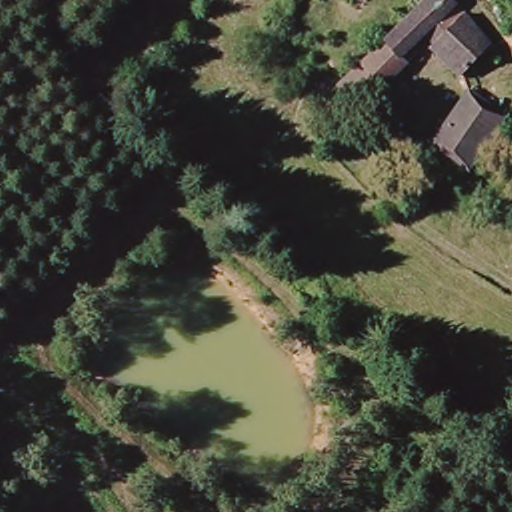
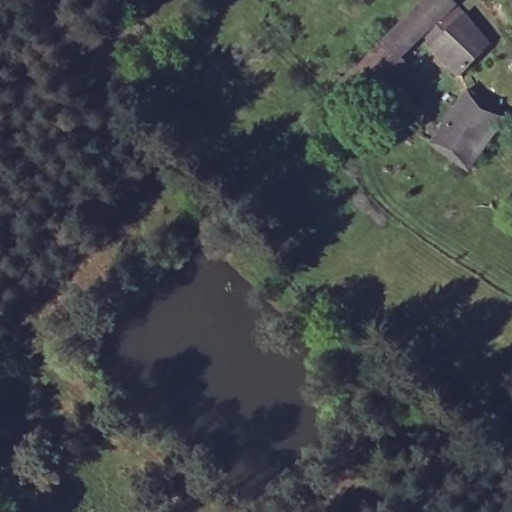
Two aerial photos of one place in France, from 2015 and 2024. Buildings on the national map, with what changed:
unchanged [(361,111),(338,88),(425,0),(453,0),(490,54),(457,83),(429,53),(435,48),(427,40),(412,54),(419,61),(361,111)]
unchanged [(463,177),(429,148),(473,95),(508,124),(463,177)]
unchanged [(419,131),(414,135),(405,144),(390,126),(387,125),(400,114),(419,131)]

